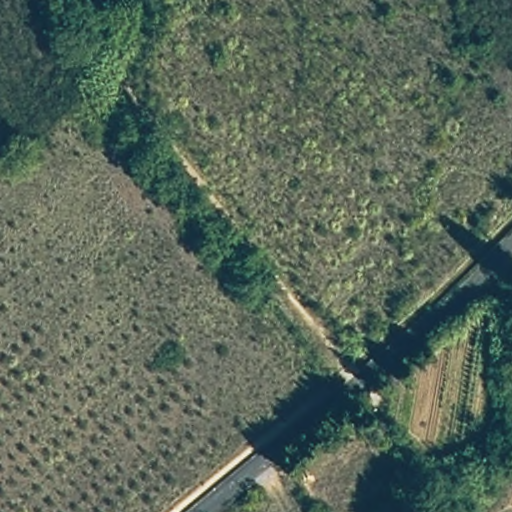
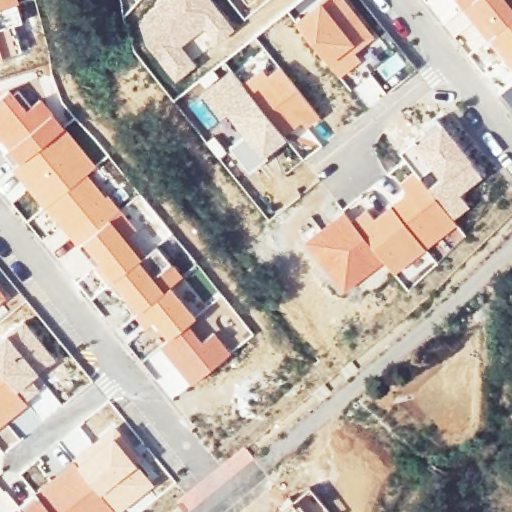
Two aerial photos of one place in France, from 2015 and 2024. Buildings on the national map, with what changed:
new [(0,0),(17,0),(22,21),(12,24),(21,51),(0,59),(0,0)]
new [(317,0),(346,0),(375,35),(355,52),(361,60),(338,77),(294,18),(317,0)]
new [(426,0),(450,0),(485,41),(486,43),(483,45),(468,56),(425,1),(426,0)]
new [(485,41),(450,0),(512,0),(512,20),(485,41)]
new [(486,43),(485,41),(512,20),(512,78),(483,45),(486,43)]
new [(262,67),(267,74),(277,65),(320,117),(305,129),(301,123),(287,136),(242,82),(262,67)]
new [(226,115),(220,120),(198,95),(205,89),(198,80),(212,69),(220,76),(230,68),(242,82),(287,136),(265,158),(248,173),(227,149),(242,135),(226,115)]
new [(370,74),(386,94),(367,109),(352,90),(370,74)]
new [(27,106),(40,96),(97,165),(87,172),(42,210),(9,170),(13,167),(0,148),(0,96),(10,88),(27,106)]
new [(437,119),(482,175),(460,194),(470,206),(454,220),(412,170),(397,152),(437,119)]
new [(408,288),(395,275),(394,276),(383,263),(351,219),(365,207),(373,216),(390,203),(405,191),(398,183),(412,170),(454,220),(466,235),(450,250),(441,240),(427,250),(437,262),(408,288)]
new [(87,172),(122,210),(77,245),(75,247),(42,210),(87,172)]
new [(106,286),(90,268),(94,265),(77,245),(122,210),(137,230),(128,238),(142,255),(157,244),(183,276),(172,285),(196,315),(188,322),(202,340),(213,331),(230,352),(189,386),(172,399),(157,380),(160,378),(144,359),(157,347),(132,316),(106,286)]
new [(343,210),(351,219),(383,263),(342,295),(304,242),(343,210)]
new [(3,301),(11,310),(0,320),(0,289),(7,298),(3,301)]
new [(23,320),(55,358),(40,372),(7,333),(23,320)]
new [(40,372),(35,377),(17,391),(0,371),(0,338),(7,333),(40,372)]
new [(28,404),(10,419),(0,427),(0,371),(17,391),(28,404)]
new [(28,404),(17,391),(35,377),(62,405),(25,435),(10,419),(28,404)]
new [(92,442),(110,428),(155,485),(149,490),(155,497),(139,512),(128,512),(125,508),(121,512),(117,512),(115,511),(72,460),(75,455),(60,440),(78,425),(92,442)]
new [(115,511),(114,512),(52,512),(35,492),(72,460),(115,511)]
new [(331,512),(280,512),(310,487),(331,512)]
new [(52,512),(14,512),(35,492),(52,512)]

